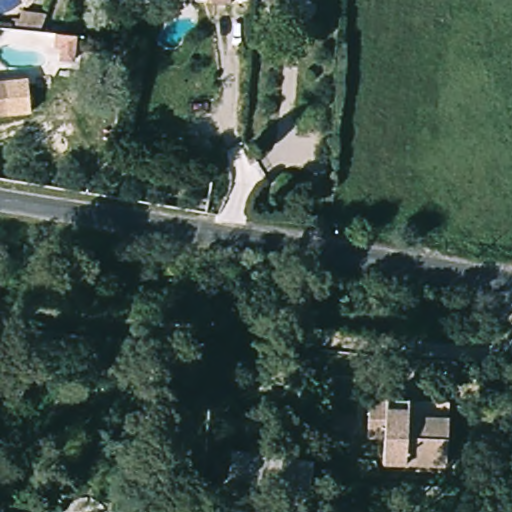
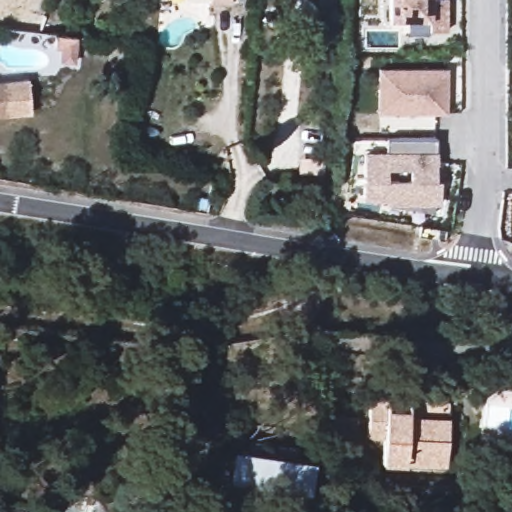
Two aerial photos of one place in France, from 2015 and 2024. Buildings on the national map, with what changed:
unchanged [(212,2),(212,0),(233,0),(233,2),(212,2)]
new [(427,20),(388,20),(389,0),(447,0),(447,31),(428,31),(427,20)]
new [(10,19),(19,20),(20,13),(45,14),(39,32),(9,30),(10,19)]
new [(77,60),(75,60),(74,62),(62,61),(62,51),(57,51),(59,38),(79,41),(77,60)]
new [(379,68),(447,68),(446,112),(395,112),(379,112),(379,95),(379,68)]
unchanged [(26,127),(0,127),(0,80),(27,81),(26,127)]
new [(386,203),(363,203),(363,155),(385,156),(385,140),(435,140),(435,167),(438,166),(438,183),(438,207),(433,207),(433,216),(386,209),(386,206),(386,203)]
unchanged [(367,429),(366,399),(446,397),(447,461),(383,462),(384,437),(367,437),(367,429)]
unchanged [(332,428),(337,403),(362,408),(355,433),(332,428)]
unchanged [(309,490),(230,488),(230,459),(310,462),(309,490)]

